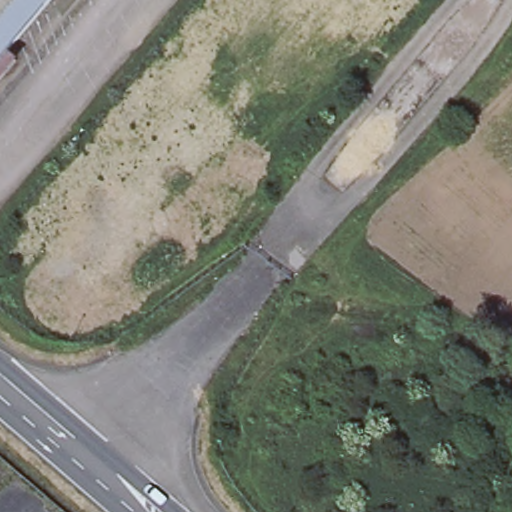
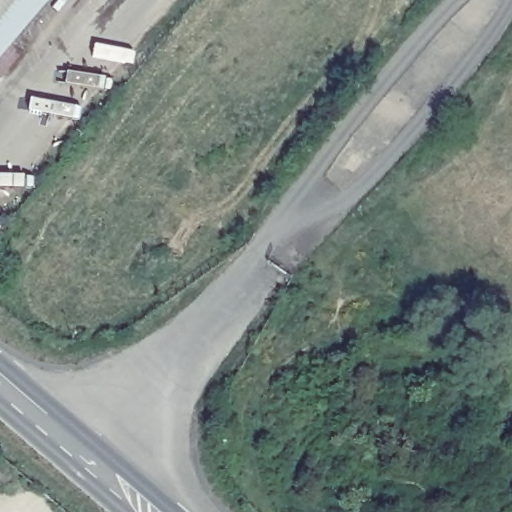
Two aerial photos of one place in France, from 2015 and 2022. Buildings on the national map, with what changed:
unchanged [(15,62),(0,82),(0,0),(54,0),(7,54),(15,62)]

